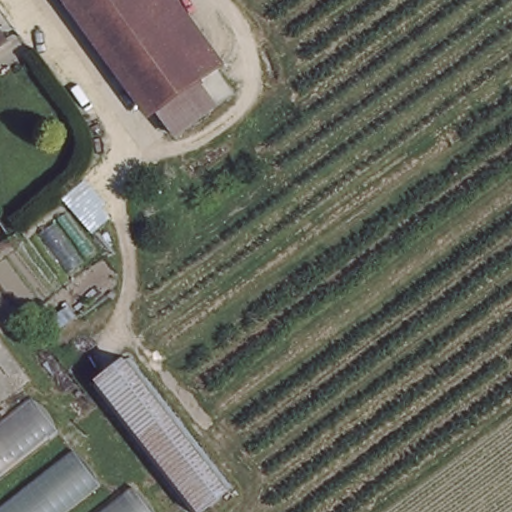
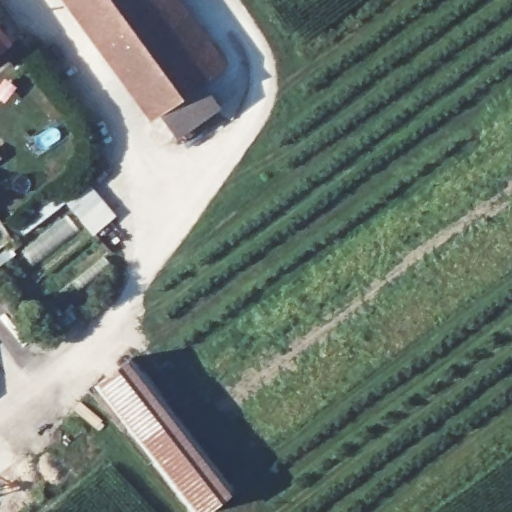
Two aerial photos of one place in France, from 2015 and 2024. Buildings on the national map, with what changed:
unchanged [(197,87),(160,115),(75,0),(144,0),(204,81),(197,87)]
unchanged [(204,81),(144,0),(176,0),(224,66),(204,81)]
unchanged [(0,46),(0,43),(2,45),(0,46)]
unchanged [(213,109),(177,138),(160,115),(197,87),(213,109)]
unchanged [(94,387),(133,358),(190,432),(152,462),(94,387)]
demolished [(110,499),(139,478),(159,512),(0,512),(0,424),(42,395),(110,499)]
unchanged [(232,485),(201,512),(190,512),(152,462),(190,432),(232,485)]

